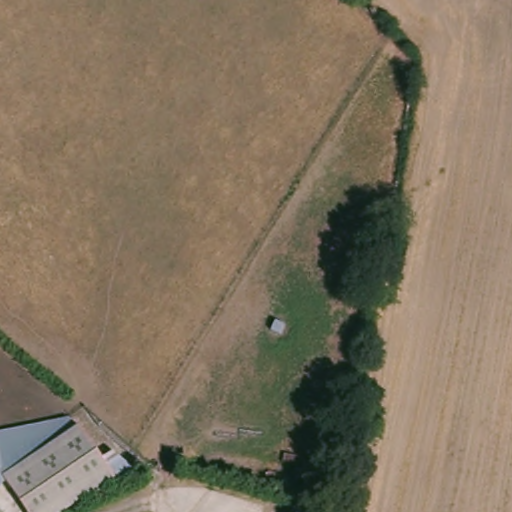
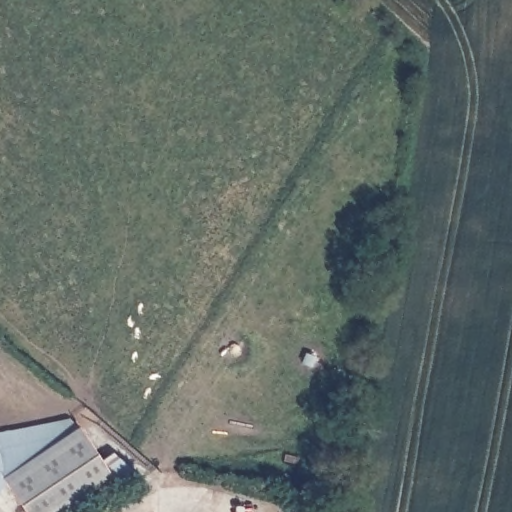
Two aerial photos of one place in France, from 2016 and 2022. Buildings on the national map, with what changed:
unchanged [(75,429),(78,427),(102,460),(114,453),(140,476),(74,512),(26,512),(7,485),(0,492),(0,433),(68,420),(75,429)]

